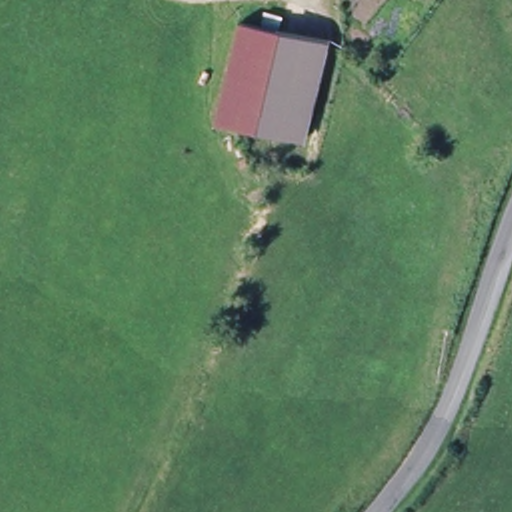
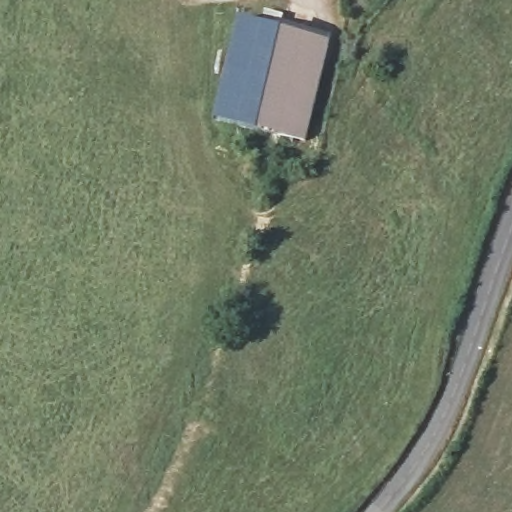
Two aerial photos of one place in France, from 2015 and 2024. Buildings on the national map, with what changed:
unchanged [(220,119),(251,24),(320,49),(295,146),(220,119)]

